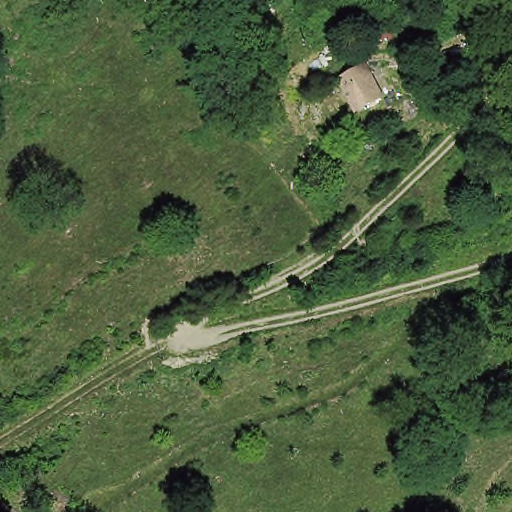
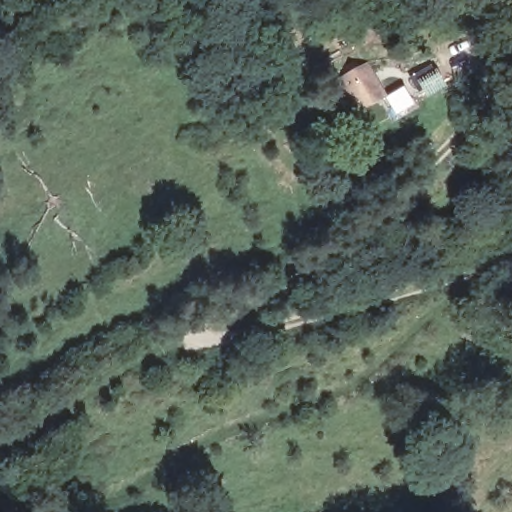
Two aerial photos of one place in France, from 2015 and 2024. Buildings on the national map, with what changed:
unchanged [(340,82),(366,69),(383,100),(358,115),(340,82)]

